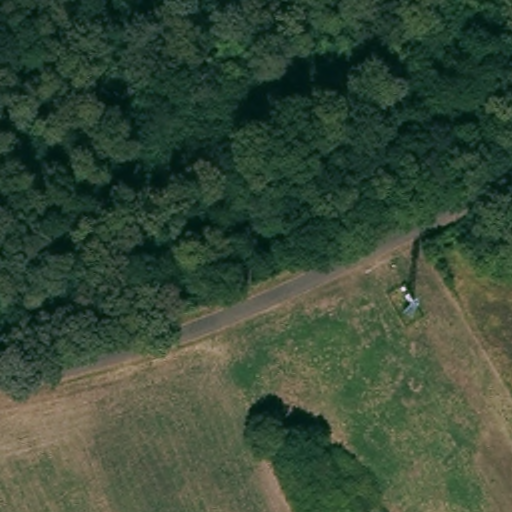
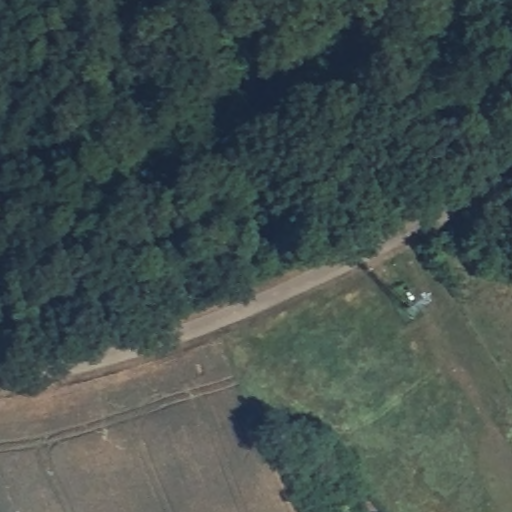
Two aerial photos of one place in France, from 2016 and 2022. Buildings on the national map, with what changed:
[]

